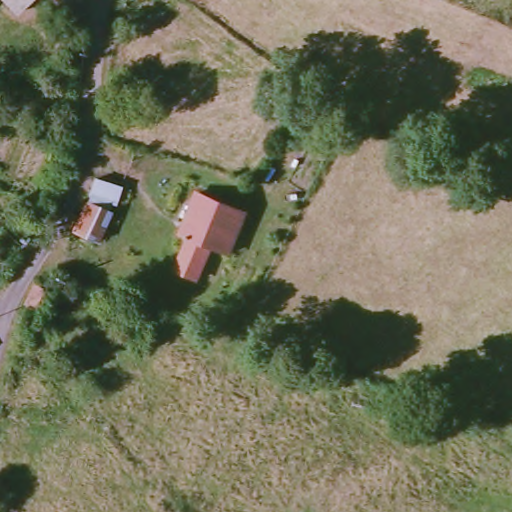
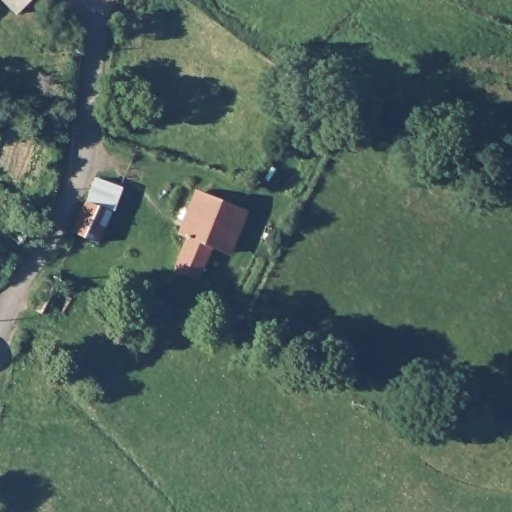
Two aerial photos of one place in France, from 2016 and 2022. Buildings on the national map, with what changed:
unchanged [(0,3),(0,0),(29,0),(13,16),(0,3)]
unchanged [(123,183),(117,203),(113,202),(111,209),(114,211),(99,244),(70,231),(87,200),(93,176),(123,183)]
unchanged [(181,270),(194,236),(187,234),(195,211),(202,193),(243,208),(251,211),(235,252),(216,244),(203,278),(181,270)]
unchanged [(55,285),(47,280),(53,271),(60,275),(55,285)]
unchanged [(42,318),(26,308),(35,287),(42,285),(53,291),(42,318)]

